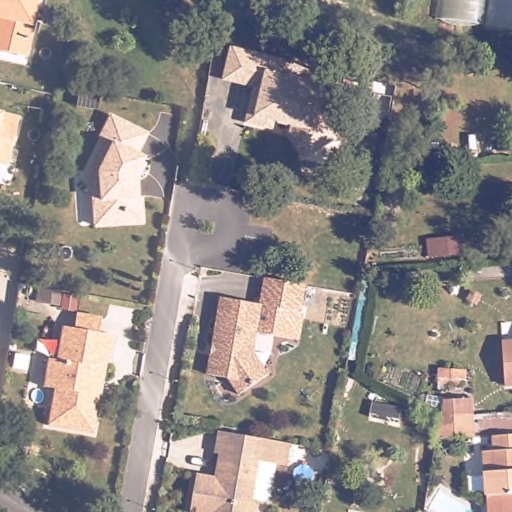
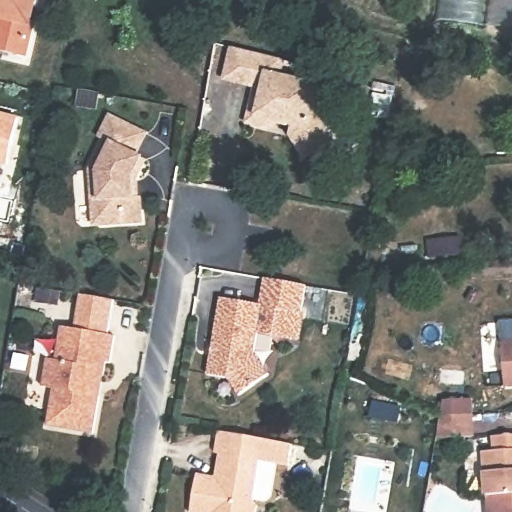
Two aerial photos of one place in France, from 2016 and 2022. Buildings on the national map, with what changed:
unchanged [(26,56),(0,50),(0,0),(39,0),(33,26),(26,56)]
unchanged [(439,26),(442,0),(512,0),(512,34),(439,26)]
unchanged [(271,56),(284,60),(280,78),(319,87),(316,101),(326,103),(323,116),(336,138),(306,156),(292,135),(295,125),(292,124),(289,119),(281,117),(276,120),(273,119),(272,127),(249,121),(254,104),(263,98),(265,91),(257,89),(258,86),(227,79),(234,48),(271,56)]
unchanged [(106,111),(142,130),(131,151),(142,156),(133,175),(129,175),(130,193),(136,193),(139,218),(90,222),(86,166),(101,136),(95,134),(106,111)]
unchanged [(5,165),(0,164),(0,114),(16,118),(5,165)]
unchanged [(437,256),(436,240),(461,238),(462,254),(437,256)]
unchanged [(269,274),(306,281),(302,309),(272,303),(267,330),(258,329),(254,348),(269,370),(240,390),(228,374),(207,370),(221,293),(260,300),(265,274),(269,274)]
unchanged [(81,294),(114,301),(106,335),(99,334),(74,329),(81,294)]
unchanged [(111,364),(99,362),(93,395),(100,396),(94,434),(48,426),(54,390),(43,388),(48,359),(56,361),(63,327),(74,329),(99,334),(115,337),(111,364)]
unchanged [(510,381),(507,338),(512,338),(512,380),(510,381)]
unchanged [(470,366),(469,380),(452,379),(445,379),(446,364),(455,365),(470,366)]
unchanged [(478,432),(442,434),(446,412),(449,395),(476,394),(477,410),(478,432)]
unchanged [(491,508),(489,481),(487,481),(484,437),(495,436),(494,421),(512,420),(512,506),(491,508)]
unchanged [(291,444),(287,466),(276,464),(271,497),(265,501),(254,499),(254,500),(258,506),(256,512),(191,512),(198,475),(216,478),(218,469),(221,455),(216,454),(220,432),(254,438),(280,442),(291,444)]

